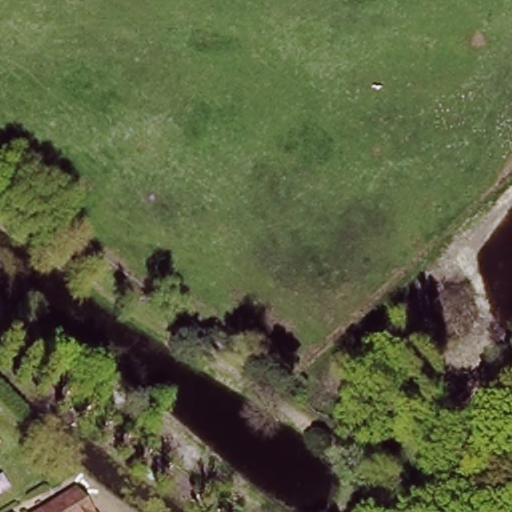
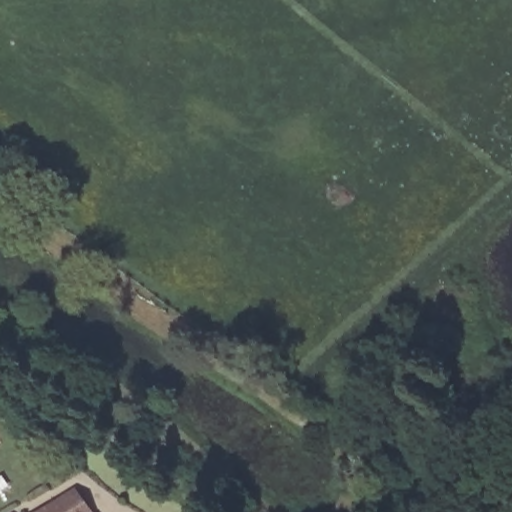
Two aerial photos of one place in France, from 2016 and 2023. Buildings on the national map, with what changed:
unchanged [(93,512),(36,512),(77,490),(93,512)]

